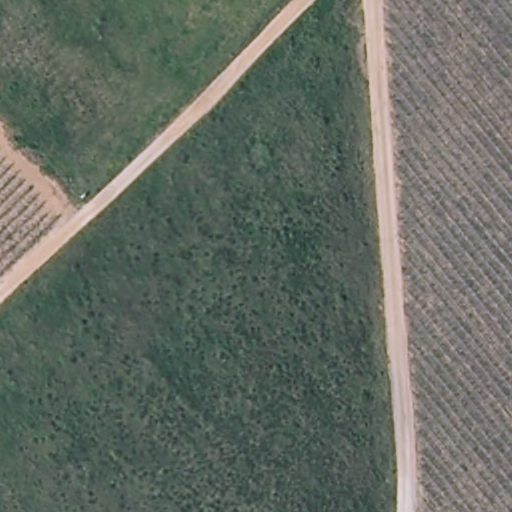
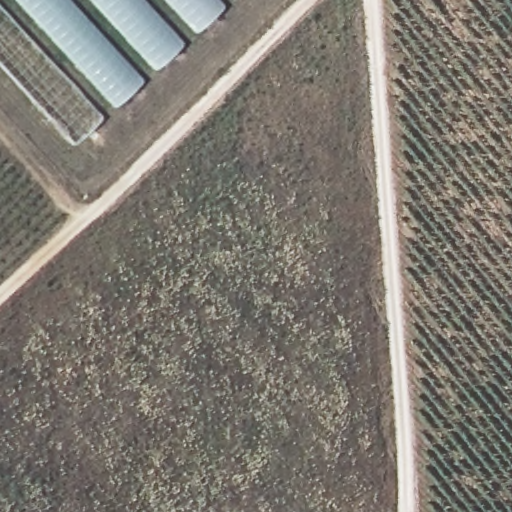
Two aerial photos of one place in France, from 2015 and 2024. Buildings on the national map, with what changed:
new [(0,63),(0,0),(227,0),(74,143),(0,63)]

